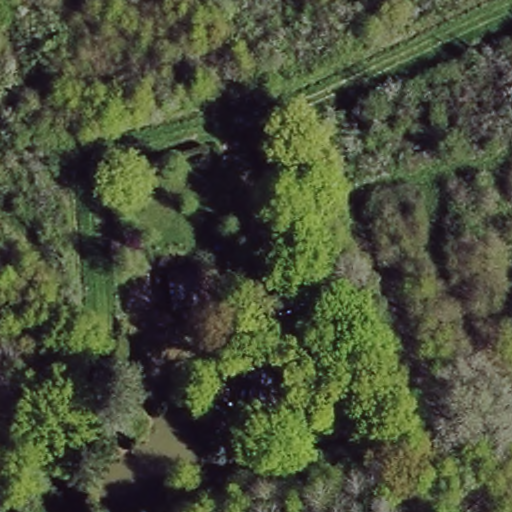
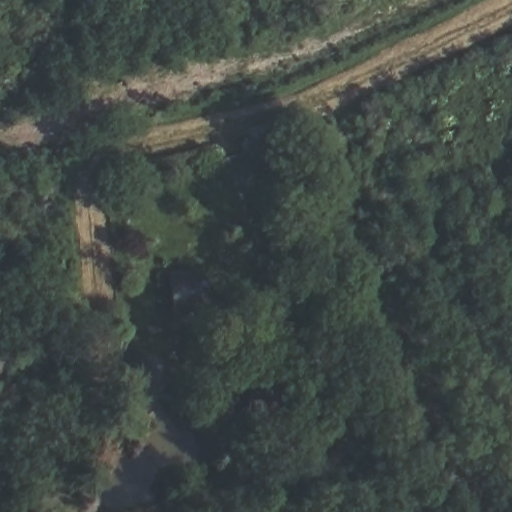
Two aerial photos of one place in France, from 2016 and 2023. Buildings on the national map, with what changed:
unchanged [(161,267),(195,266),(203,305),(170,311),(161,267)]

